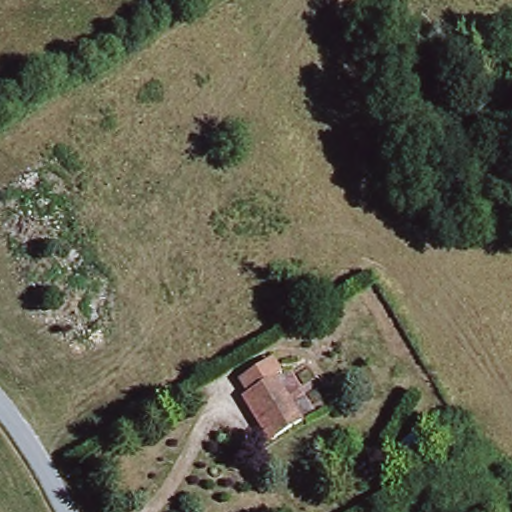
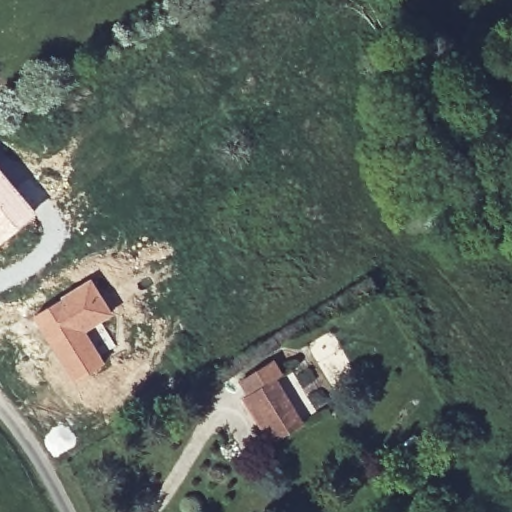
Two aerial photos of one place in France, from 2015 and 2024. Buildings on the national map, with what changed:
new [(36,211),(0,243),(0,168),(36,211)]
new [(90,277),(112,315),(87,331),(105,363),(72,381),(30,316),(90,277)]
unchanged [(255,399),(245,381),(281,363),(288,377),(280,382),(303,427),(277,441),(268,446),(245,404),(255,399)]

